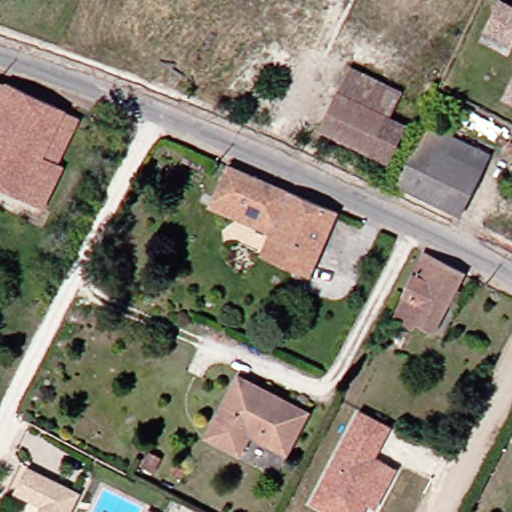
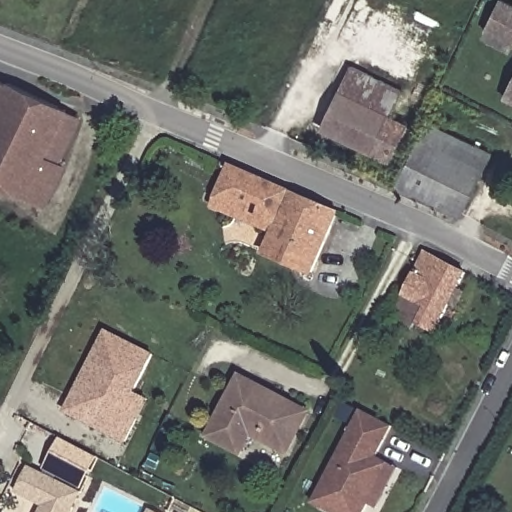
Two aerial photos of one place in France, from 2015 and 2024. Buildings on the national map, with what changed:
unchanged [(512,7),(512,45),(511,46),(482,31),(498,0),(512,7)]
unchanged [(355,66),(406,89),(393,117),(342,93),(355,66)]
unchanged [(501,97),(512,77),(512,103),(501,97)]
unchanged [(70,112),(49,157),(63,164),(67,166),(47,207),(0,183),(0,80),(7,84),(11,85),(12,82),(30,92),(70,112)]
unchanged [(376,152),(325,129),(342,93),(393,117),(376,152)]
unchanged [(401,184),(430,123),(493,153),(465,214),(401,184)]
unchanged [(221,194),(232,168),(234,166),(342,212),(341,214),(325,251),(277,231),(282,219),(221,194)]
unchanged [(325,251),(315,273),(267,253),(277,231),(325,251)]
unchanged [(440,331),(414,318),(411,324),(397,317),(430,252),(470,272),(440,331)]
new [(106,330),(153,353),(136,392),(147,398),(126,441),(64,412),(106,330)]
unchanged [(312,412),(291,451),(255,432),(245,452),(214,436),(245,377),(312,412)]
unchanged [(368,506),(365,512),(327,512),(311,504),(360,412),(391,428),(375,460),(382,463),(396,471),(375,510),(368,506)]
unchanged [(15,492),(28,466),(80,492),(70,512),(38,512),(41,505),(15,492)]
unchanged [(155,512),(147,512),(149,509),(155,512)]

